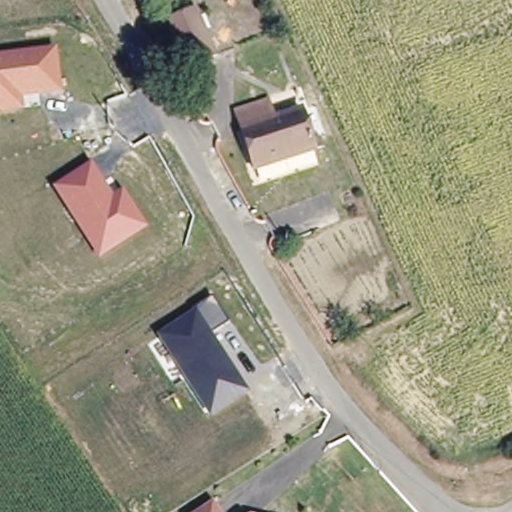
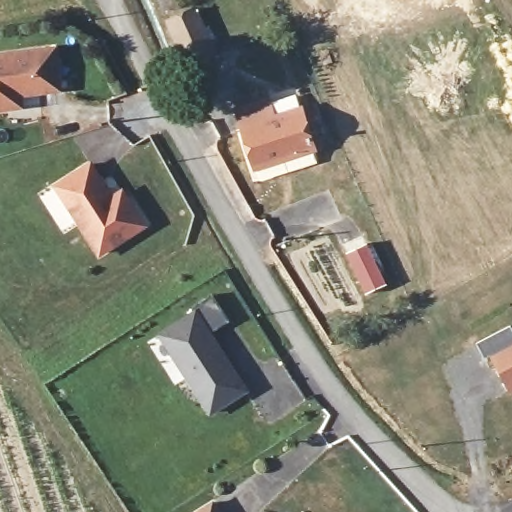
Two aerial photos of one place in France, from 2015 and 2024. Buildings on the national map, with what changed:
unchanged [(166,21),(157,0),(174,0),(180,13),(166,21)]
unchanged [(218,62),(188,76),(169,29),(197,14),(218,62)]
unchanged [(7,108),(0,109),(0,56),(54,49),(60,89),(40,91),(42,103),(7,108)]
unchanged [(317,149),(257,166),(239,107),(268,97),(275,114),(303,105),(317,149)]
unchanged [(100,252),(56,185),(89,164),(100,180),(110,174),(129,204),(143,225),(100,252)]
new [(347,252),(366,242),(386,286),(366,295),(347,252)]
unchanged [(229,322),(210,334),(249,394),(210,416),(157,331),(212,297),(229,322)]
new [(493,354),(485,358),(477,343),(510,325),(512,329),(512,389),(510,390),(493,354)]
unchanged [(213,504),(218,512),(198,512),(213,504)]

